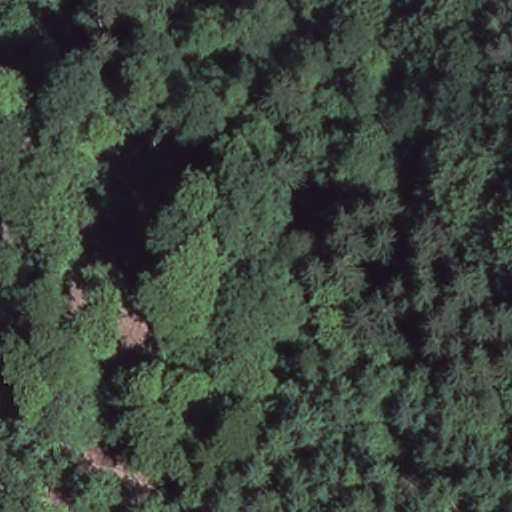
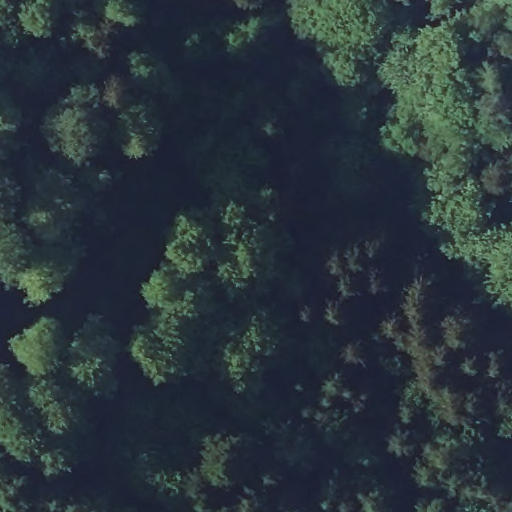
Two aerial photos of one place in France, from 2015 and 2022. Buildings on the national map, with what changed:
unchanged [(227,279),(226,275),(226,270),(229,265),(233,262),(238,262),(243,263),(248,266),(249,271),(250,276),(248,280),(244,283),(240,286),(235,286),(231,283),(227,279)]

